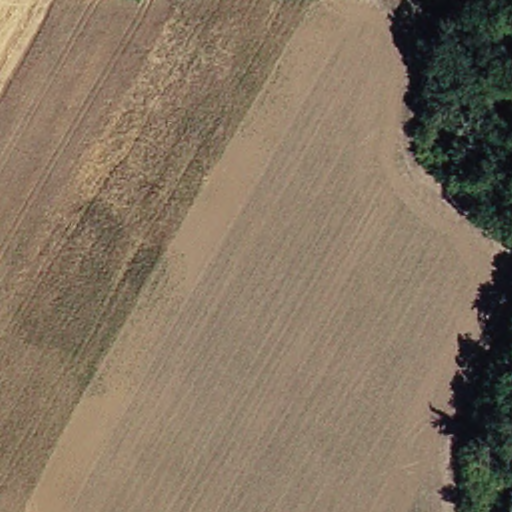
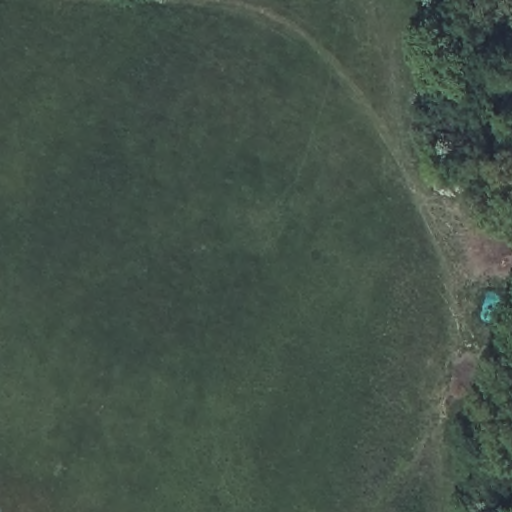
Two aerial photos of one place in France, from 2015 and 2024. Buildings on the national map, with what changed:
[]

